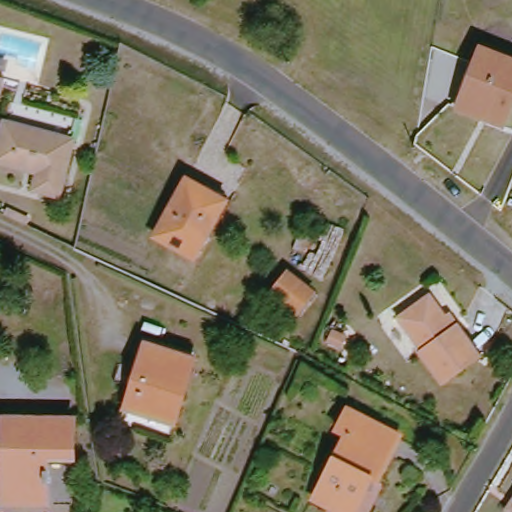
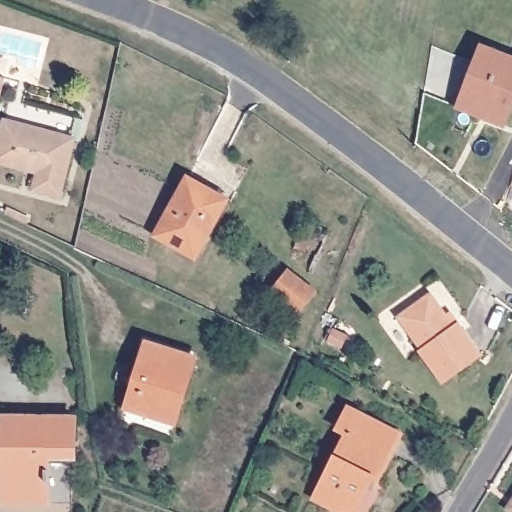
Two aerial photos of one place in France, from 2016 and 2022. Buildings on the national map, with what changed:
unchanged [(505,126),(457,106),(479,46),(512,58),(512,107),(505,126)]
unchanged [(0,77),(5,78),(0,101),(0,77)]
unchanged [(60,198),(28,190),(32,173),(0,164),(0,117),(75,138),(60,198)]
unchanged [(205,225),(209,227),(194,256),(152,232),(182,174),(220,195),(205,225)]
unchanged [(290,309),(265,287),(282,268),(306,289),(290,309)]
unchanged [(439,386),(413,355),(416,353),(390,320),(421,294),(447,328),(454,324),(477,354),(439,386)]
unchanged [(170,422),(120,406),(141,340),(190,354),(170,422)]
unchanged [(377,477),(371,474),(353,512),(352,512),(315,495),(343,431),(335,427),(343,405),(398,430),(377,477)]
unchanged [(69,454),(40,452),(40,466),(45,466),(44,481),(40,481),(39,496),(0,494),(0,432),(0,411),(69,414),(69,454)]
unchanged [(504,509),(512,497),(512,512),(508,512),(504,509)]

